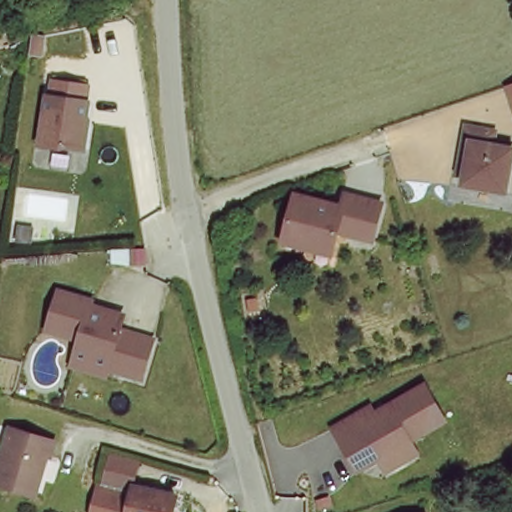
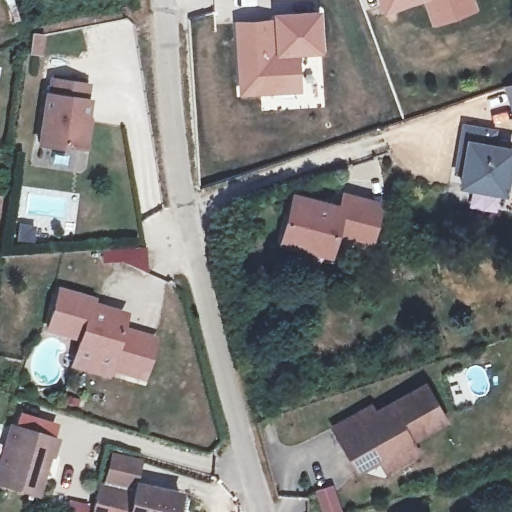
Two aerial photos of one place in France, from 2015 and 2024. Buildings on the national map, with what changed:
new [(383,13),(378,0),(418,0),(383,13)]
new [(479,10),(432,26),(421,0),(475,0),(479,10)]
new [(273,15),(273,11),(324,8),(327,51),(299,53),(304,93),(239,97),(233,19),(273,15)]
unchanged [(512,79),(512,103),(505,81),(512,79)]
unchanged [(86,87),(84,102),(87,102),(84,129),(88,131),(86,148),(65,146),(64,150),(41,145),(46,98),(49,96),(50,83),(86,87)]
unchanged [(462,158),(467,130),(498,135),(495,149),(512,153),(512,176),(509,195),(464,188),(466,177),(459,176),(462,158)]
unchanged [(333,256),(284,244),(292,206),(340,217),(344,201),(366,206),(381,208),(374,244),(358,241),(338,236),(333,256)]
unchanged [(144,240),(146,256),(131,258),(129,242),(144,240)]
unchanged [(76,365),(80,348),(83,339),(49,329),(60,291),(94,300),(91,310),(125,319),(123,329),(156,338),(146,377),(111,367),(109,375),(76,365)]
unchanged [(393,473),(384,461),(365,473),(339,431),(375,409),(379,416),(429,388),(449,421),(414,443),(422,456),(393,473)]
unchanged [(53,460),(48,458),(36,498),(0,488),(0,473),(11,432),(58,445),(53,460)]
unchanged [(138,455),(132,486),(129,495),(113,489),(109,512),(86,512),(100,442),(138,455)]
unchanged [(129,495),(132,486),(179,498),(177,512),(109,512),(113,489),(129,495)]

